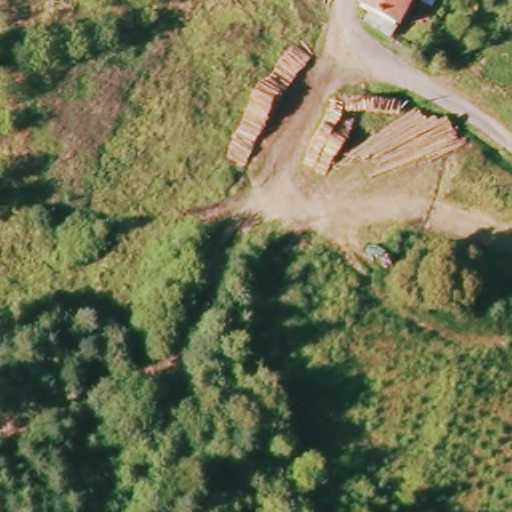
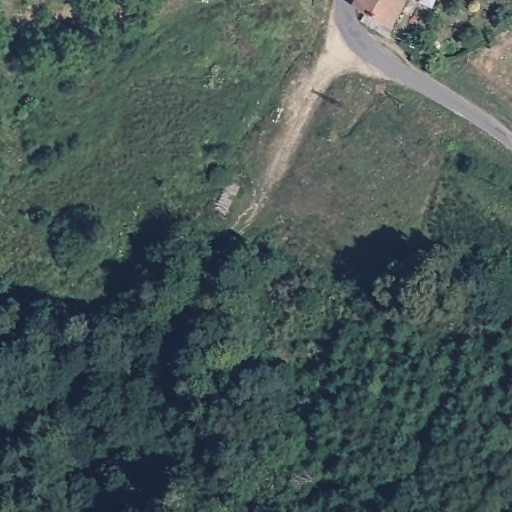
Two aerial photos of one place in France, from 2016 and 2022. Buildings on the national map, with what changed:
unchanged [(364,24),(367,16),(356,6),(359,0),(400,0),(385,27),(378,36),(364,24)]
unchanged [(445,71),(432,62),(442,47),(455,60),(448,73),(445,71)]

